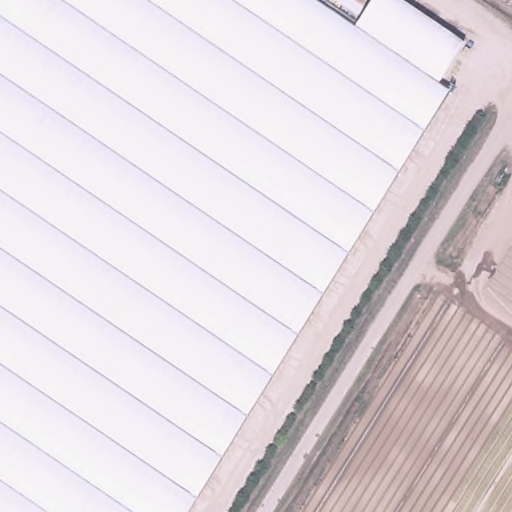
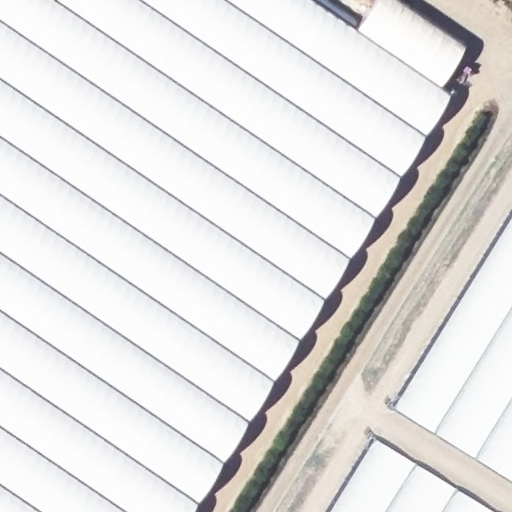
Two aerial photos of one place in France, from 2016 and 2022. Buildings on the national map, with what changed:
unchanged [(421,18),(462,46),(440,81),(437,85),(450,93),(188,512),(0,512),(0,0),(307,0),(395,59),(421,18)]
new [(512,223),(512,481),(396,409),(512,223)]
new [(378,440),(494,512),(334,512),(378,440)]

